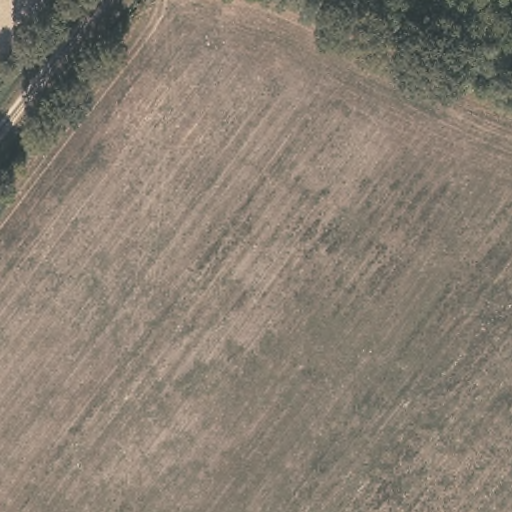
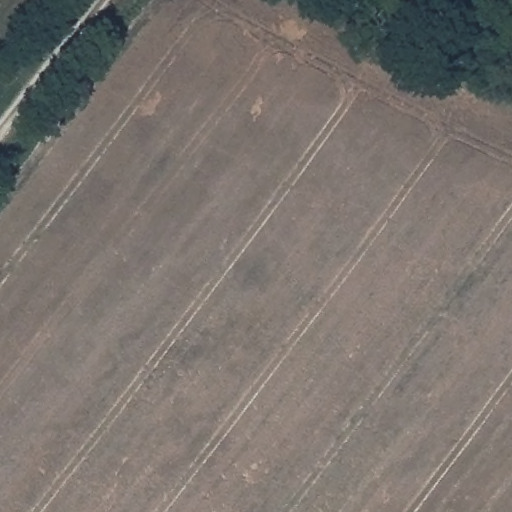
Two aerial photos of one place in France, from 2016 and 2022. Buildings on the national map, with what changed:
[]

